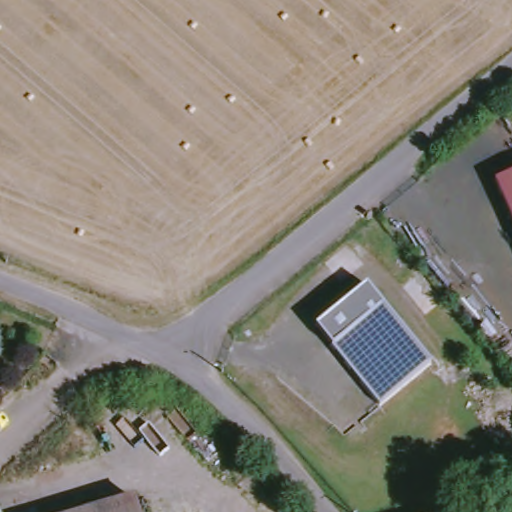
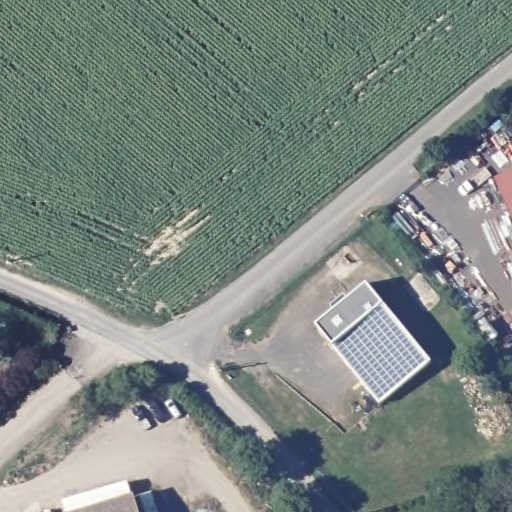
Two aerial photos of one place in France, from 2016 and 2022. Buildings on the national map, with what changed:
unchanged [(499,181),(512,175),(512,213),(499,181)]
unchanged [(365,283),(430,361),(380,404),(314,326),(365,283)]
unchanged [(142,512),(102,512),(139,501),(142,512)]

